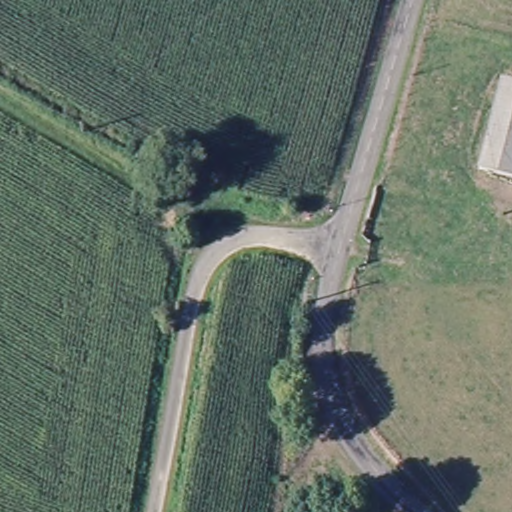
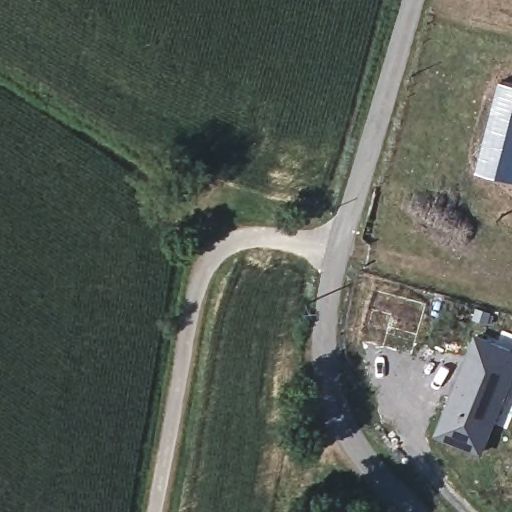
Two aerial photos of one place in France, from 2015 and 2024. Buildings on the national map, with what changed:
unchanged [(507,84),(512,85),(512,180),(485,172),(507,84)]
new [(512,348),(512,380),(483,452),(435,433),(475,332),(512,348)]

